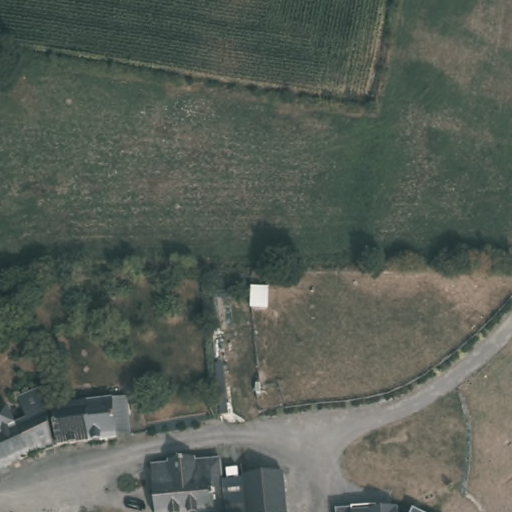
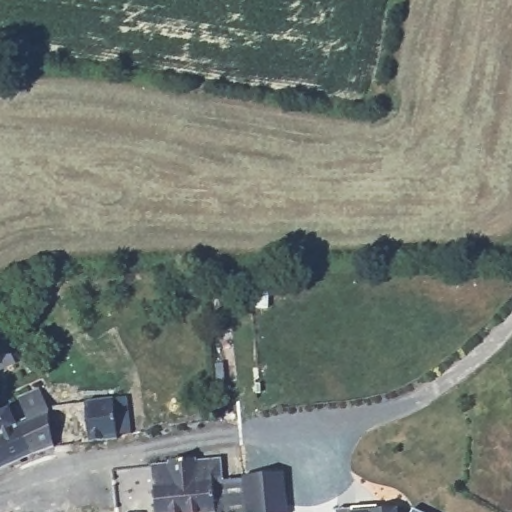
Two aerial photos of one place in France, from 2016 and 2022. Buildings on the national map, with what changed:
unchanged [(0,468),(0,405),(12,400),(19,421),(30,418),(19,395),(39,386),(47,408),(55,448),(0,468)]
unchanged [(116,401),(122,438),(65,446),(57,406),(75,405),(116,401)]
unchanged [(214,511),(205,512),(158,512),(155,485),(154,467),(163,467),(173,467),(173,461),(200,459),(200,464),(221,464),(226,512),(214,512),(214,511)]
unchanged [(222,479),(242,478),(285,474),(286,512),(226,512),(222,479)]
unchanged [(337,509),(352,508),(351,505),(371,504),(372,510),(398,508),(399,512),(338,512),(337,509)]
unchanged [(411,508),(420,512),(410,512),(411,508)]

